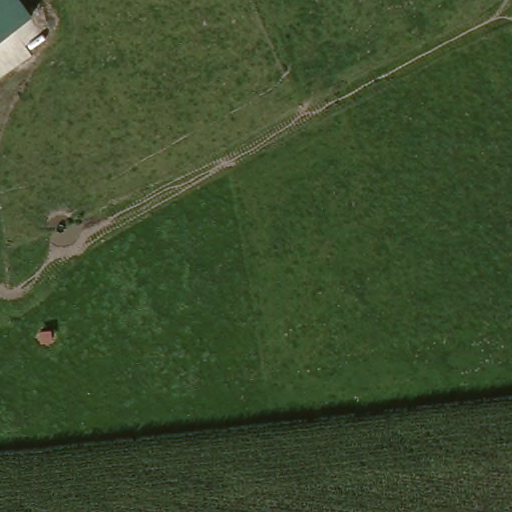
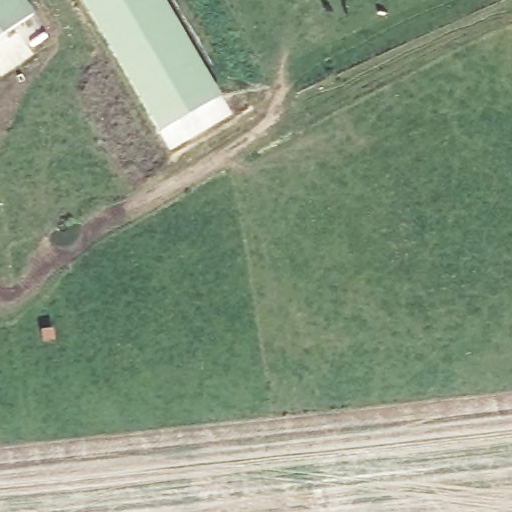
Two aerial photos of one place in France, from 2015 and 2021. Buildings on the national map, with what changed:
unchanged [(33,16),(0,40),(0,0),(21,0),(33,16)]
new [(220,98),(158,135),(79,0),(163,0),(220,98)]

